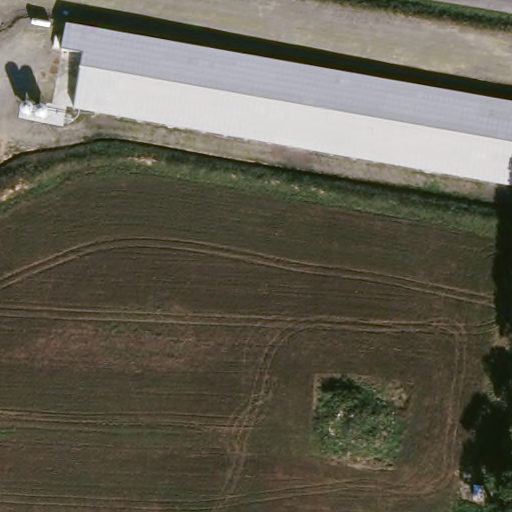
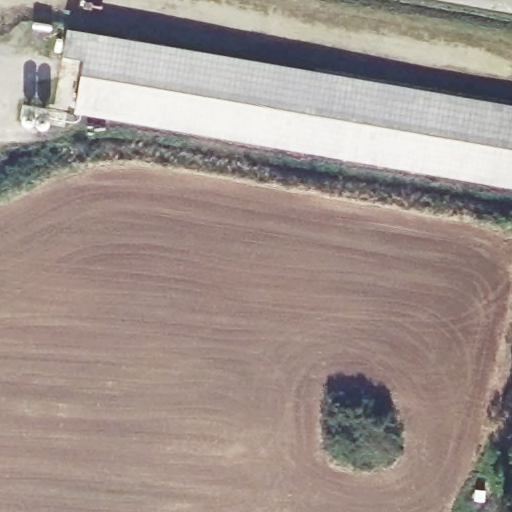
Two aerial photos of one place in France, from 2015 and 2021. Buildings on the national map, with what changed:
unchanged [(76,109),(85,53),(64,50),(67,23),(512,101),(512,186),(76,109)]

